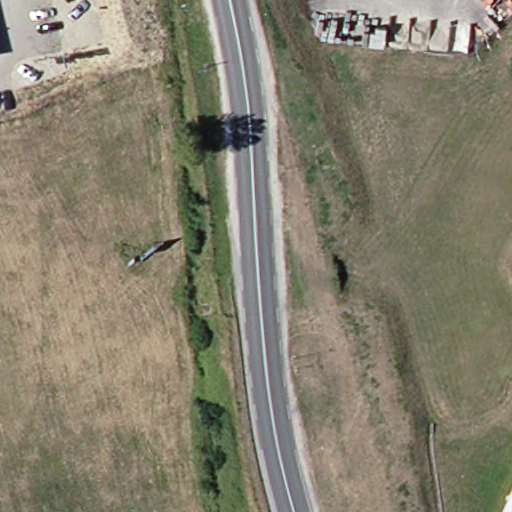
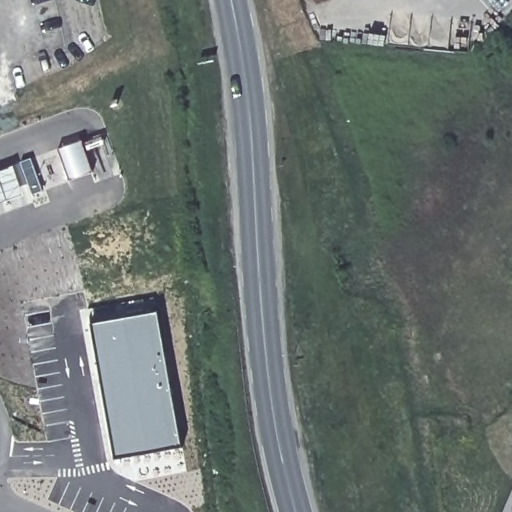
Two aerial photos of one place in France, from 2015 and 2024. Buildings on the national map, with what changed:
new [(81,139),(95,172),(71,181),(57,149),(81,139)]
new [(11,164),(23,193),(0,202),(0,168),(11,164)]
new [(181,447),(115,460),(93,323),(156,312),(181,447)]

